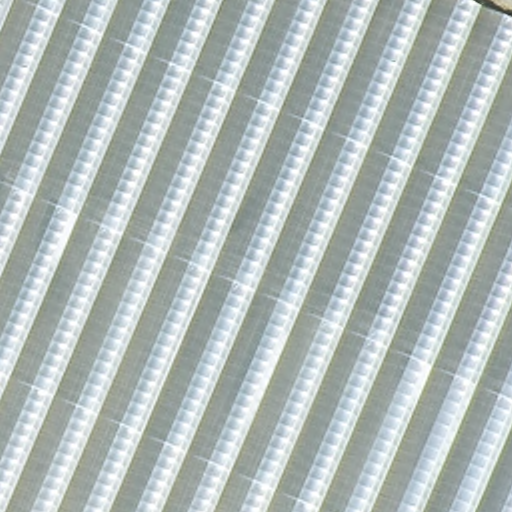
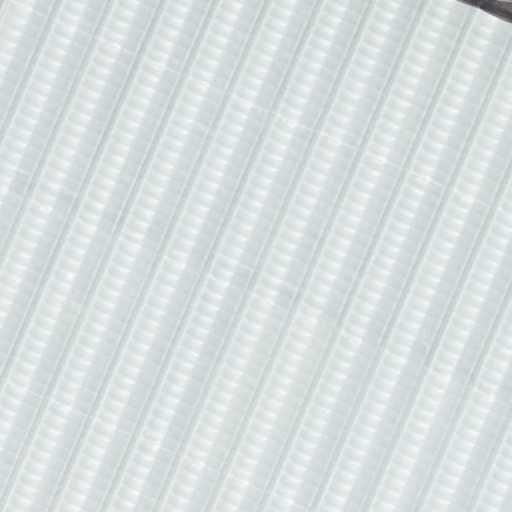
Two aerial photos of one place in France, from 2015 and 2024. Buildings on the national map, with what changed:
unchanged [(468,0),(512,19),(512,512),(0,512),(0,0),(468,0)]

